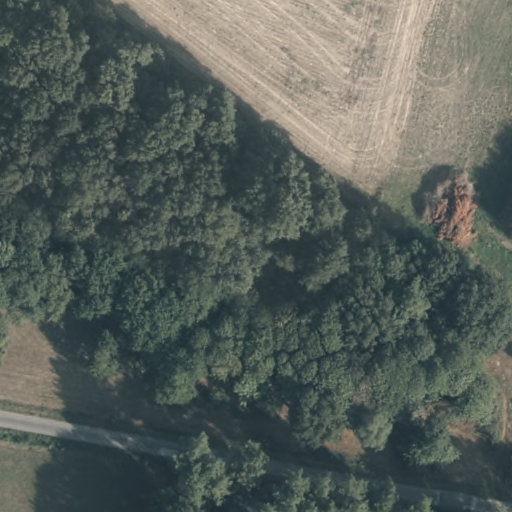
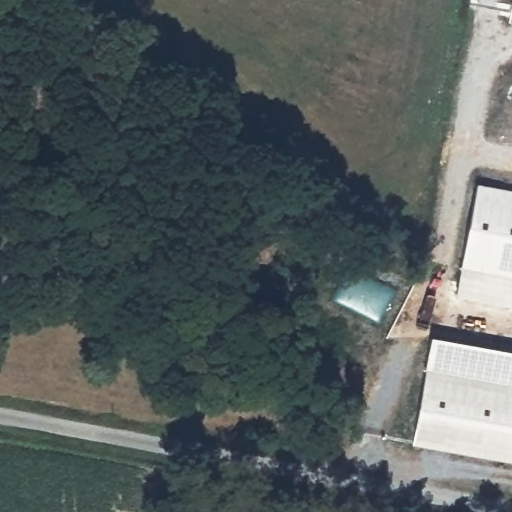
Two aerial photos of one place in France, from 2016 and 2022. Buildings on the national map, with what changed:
new [(511,0),(512,0),(512,10),(509,10),(511,0)]
new [(475,183),(512,189),(512,307),(455,297),(475,183)]
new [(512,456),(413,441),(432,337),(512,351),(512,456)]

